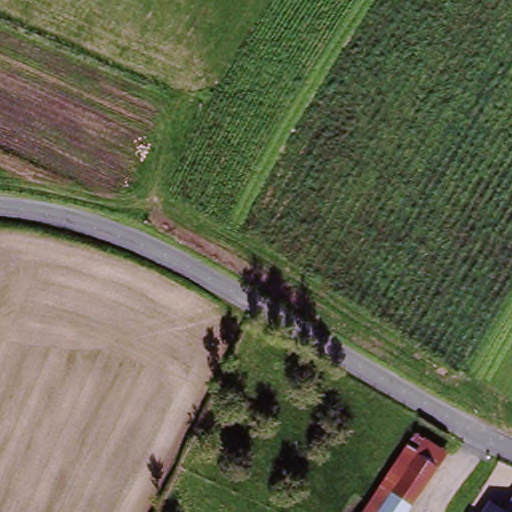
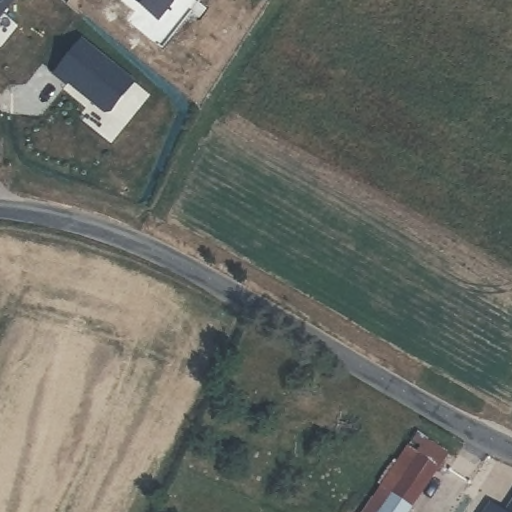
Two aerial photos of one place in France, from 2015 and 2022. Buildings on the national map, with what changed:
new [(0,0),(12,0),(0,15),(0,0)]
new [(171,2),(156,20),(132,0),(176,0),(173,4),(171,2)]
new [(135,82),(108,116),(68,84),(66,86),(51,74),(81,37),(135,82)]
unchanged [(437,469),(408,512),(362,512),(415,433),(446,455),(437,469)]
unchanged [(492,505),(504,512),(488,512),(492,505)]
unchanged [(512,510),(512,512),(511,512),(512,510)]

